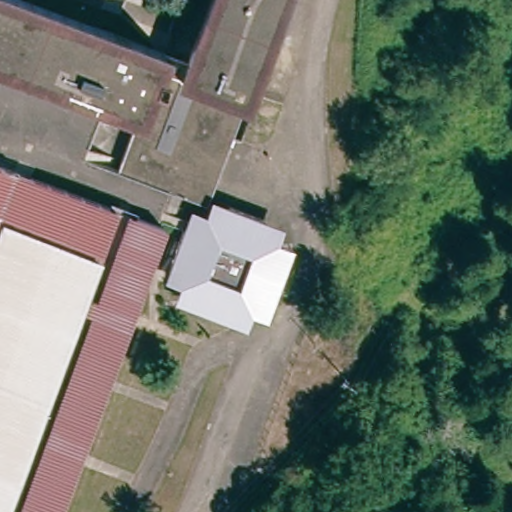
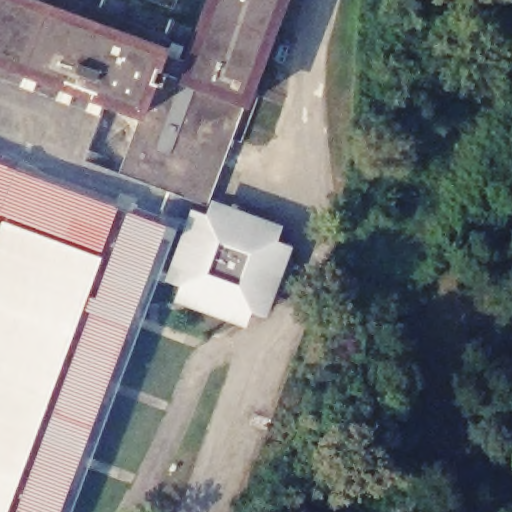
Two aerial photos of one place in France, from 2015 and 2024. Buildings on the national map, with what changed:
unchanged [(22,0),(167,54),(143,117),(0,63),(0,0),(22,0)]
unchanged [(194,64),(217,0),(287,0),(255,87),(194,64)]
unchanged [(167,54),(194,64),(255,87),(236,139),(212,206),(124,172),(143,117),(167,54)]
unchanged [(114,158),(94,150),(106,117),(127,124),(114,158)]
unchanged [(132,214),(166,226),(59,512),(0,512),(0,164),(132,214)]
unchanged [(234,207),(269,220),(290,265),(277,300),(232,321),(198,308),(202,297),(191,292),(184,279),(189,267),(177,263),(189,228),(222,241),(234,207)]

